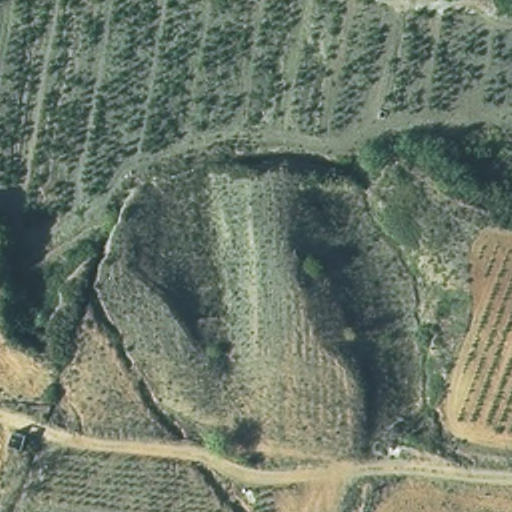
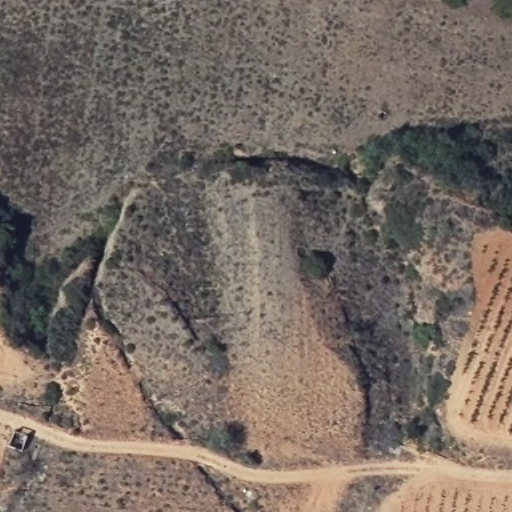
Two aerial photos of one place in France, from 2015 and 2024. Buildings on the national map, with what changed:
unchanged [(14,419),(32,426),(22,444),(5,438),(14,419)]

